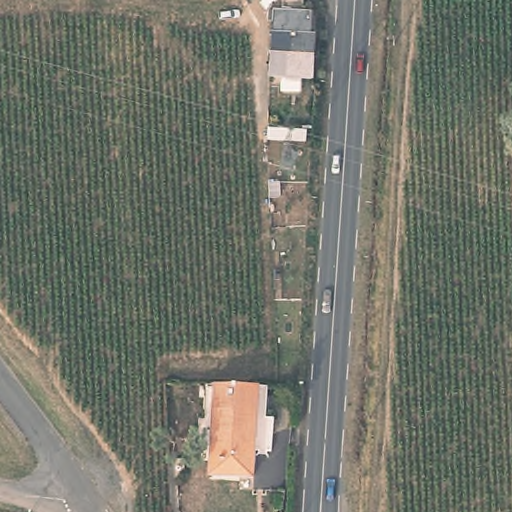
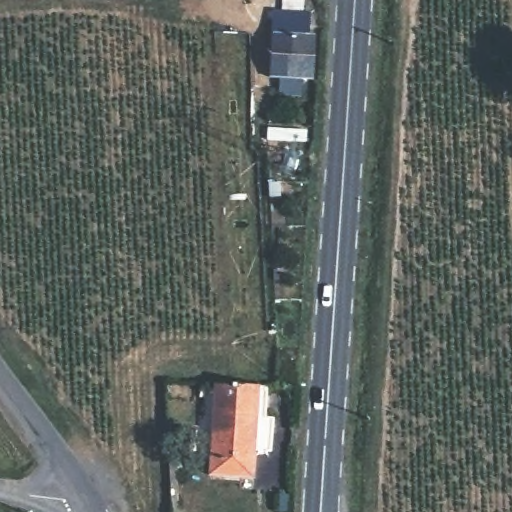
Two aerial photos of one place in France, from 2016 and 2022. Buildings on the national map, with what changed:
unchanged [(266,7),(280,8),(280,0),(300,0),(299,12),(306,12),(305,34),(310,34),(308,76),(271,74),(266,74),(268,47),(270,15),(265,15),(265,14),(265,8),(266,7)]
unchanged [(250,452),(248,478),(247,481),(205,477),(205,475),(211,403),(213,385),(227,385),(256,387),(256,396),(250,452)]

